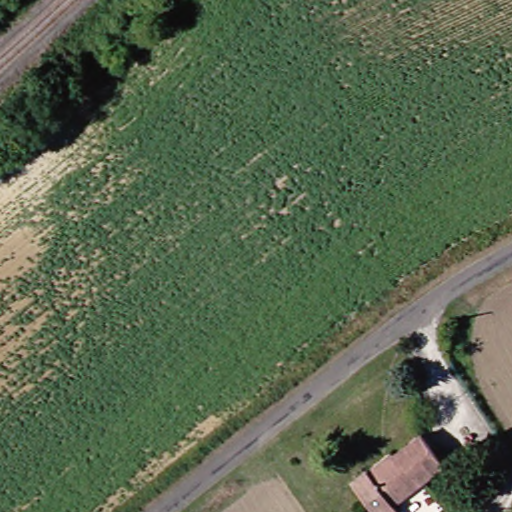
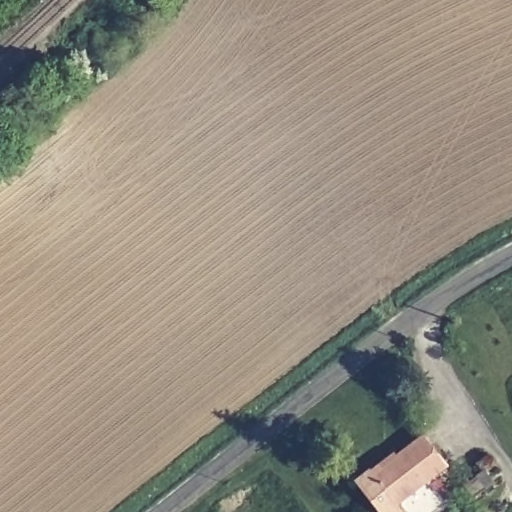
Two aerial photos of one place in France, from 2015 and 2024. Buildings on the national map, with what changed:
unchanged [(442,466),(392,504),(397,512),(372,512),(354,487),(419,435),(442,466)]

